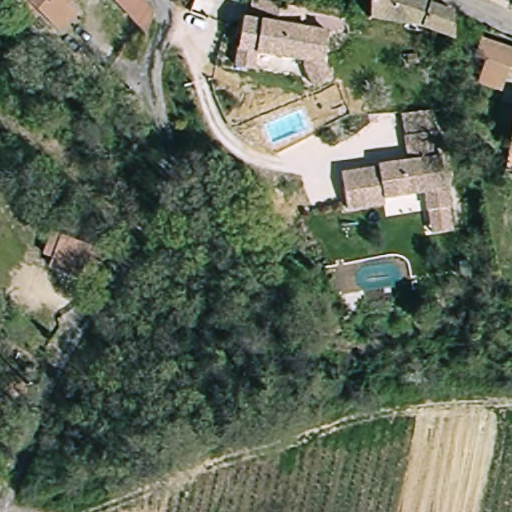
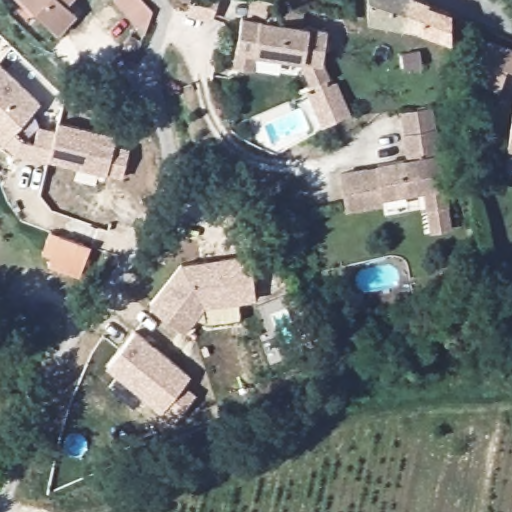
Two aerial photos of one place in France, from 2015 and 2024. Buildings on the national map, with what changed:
unchanged [(82,9),(66,26),(36,0),(71,0),(82,9)]
unchanged [(156,21),(152,35),(113,2),(115,0),(144,0),(156,21)]
unchanged [(245,0),(271,0),(303,5),(300,25),(242,18),(245,0)]
unchanged [(430,4),(430,6),(451,12),(453,35),(427,25),(425,20),(368,10),(368,0),(422,0),(430,4)]
unchanged [(300,25),(328,30),(323,59),(330,75),(313,82),(305,63),(306,56),(256,50),(254,68),(235,65),(242,18),(300,25)]
unchanged [(512,64),(506,61),(497,90),(477,81),(483,57),(470,52),(477,35),(512,45),(512,64)]
new [(39,105),(13,131),(21,140),(35,144),(38,127),(55,131),(46,161),(14,152),(0,139),(0,66),(39,105)]
new [(341,84),(355,114),(322,127),(309,99),(341,84)]
unchanged [(431,209),(428,190),(385,195),(386,201),(349,206),(345,171),(382,166),(382,164),(413,159),(410,133),(407,111),(439,107),(441,130),(451,206),(431,209)]
unchanged [(512,138),(510,138),(512,116),(512,138)]
new [(56,133),(58,124),(116,140),(114,150),(129,154),(121,180),(49,160),(56,133)]
unchanged [(512,158),(507,157),(510,138),(512,138),(512,158)]
unchanged [(92,244),(80,275),(45,261),(53,229),(92,244)]
new [(183,265),(242,257),(247,276),(255,275),(257,300),(206,306),(185,331),(152,304),(183,265)]
new [(135,332),(191,377),(178,392),(190,402),(175,421),(108,366),(135,332)]

